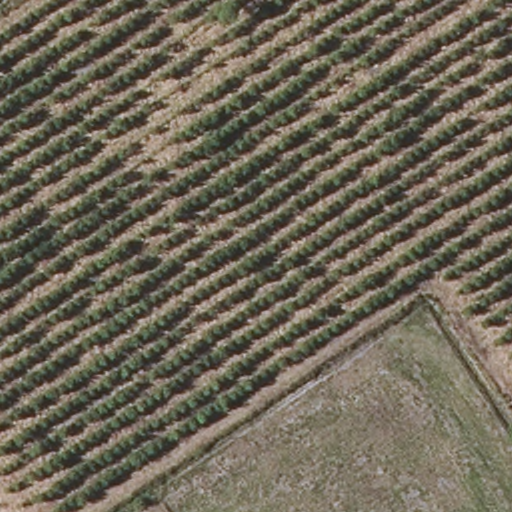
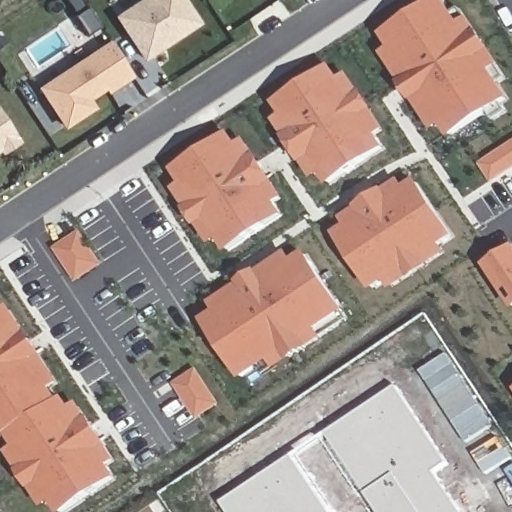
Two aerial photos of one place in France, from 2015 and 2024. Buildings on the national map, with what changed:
new [(180,0),(195,23),(142,59),(115,18),(142,0),(180,0)]
new [(479,56),(507,99),(452,136),(424,94),(417,99),(406,83),(414,79),(386,36),(440,0),(442,0),(469,41),(478,36),(488,51),(506,79),(498,85),(479,56)]
new [(478,36),(469,41),(451,14),(460,9),(478,36)]
new [(106,43),(127,75),(104,90),(102,86),(82,99),(88,107),(60,125),(36,89),(106,43)]
new [(414,79),(406,83),(387,54),(395,49),(414,79)]
new [(305,161),(289,137),(297,131),(278,104),(331,69),(353,101),(360,96),(370,111),(362,116),(384,148),(331,183),(313,156),(322,170),(315,175),(305,161)]
new [(353,101),(339,81),(347,76),(360,96),(353,101)]
new [(443,123),(436,128),(417,99),(424,94),(443,123)]
new [(376,136),(362,116),(370,111),(383,131),(376,136)]
new [(15,140),(2,148),(0,145),(0,116),(15,140)]
new [(289,137),(280,123),(288,118),(297,131),(289,137)]
new [(213,242),(203,228),(187,204),(195,199),(177,172),(230,136),(252,169),(259,164),(268,178),(261,183),(282,216),(229,251),(211,223),(220,237),(213,242)]
new [(259,164),(252,169),(238,149),(245,144),(259,164)]
new [(484,165),(512,146),(512,166),(493,179),(484,165)]
new [(282,198),(274,204),(261,183),(268,178),(282,198)]
new [(406,267),(373,288),(339,236),(370,215),(351,228),(346,220),(365,208),(382,197),(401,184),(405,192),(387,204),(418,184),(452,237),(420,258),(424,266),(411,275),(392,287),(387,280),(406,267)]
new [(195,199),(187,204),(178,190),(186,185),(195,199)]
new [(99,264),(78,278),(58,250),(80,236),(99,264)]
new [(424,266),(420,258),(439,245),(444,253),(424,266)]
new [(489,266),(512,251),(512,302),(511,301),(489,266)]
new [(291,358),(285,349),(243,377),(206,322),(247,295),(219,313),(214,305),(241,286),(260,275),(266,283),(306,256),(343,311),(348,320),(305,349),(291,358)]
new [(266,283),(260,275),(287,256),(293,265),(266,283)]
new [(33,486),(24,472),(32,466),(10,434),(3,439),(0,441),(0,315),(19,344),(1,316),(9,310),(28,338),(38,354),(58,384),(49,389),(30,360),(58,402),(63,399),(81,427),(88,422),(104,446),(115,461),(107,466),(97,451),(115,478),(64,512),(63,512),(42,481),(54,500),(46,505),(33,486)]
new [(263,376),(258,367),(285,349),(291,358),(263,376)]
new [(216,404),(199,416),(178,385),(196,374),(216,404)]
new [(366,494),(325,434),(396,387),(448,463),(434,473),(460,512),(378,512),(366,494)]
new [(88,422),(81,427),(71,412),(79,407),(88,422)]
new [(32,466),(24,472),(12,453),(19,447),(32,466)]
new [(329,512),(229,512),(222,502),(292,457),(329,512)]

